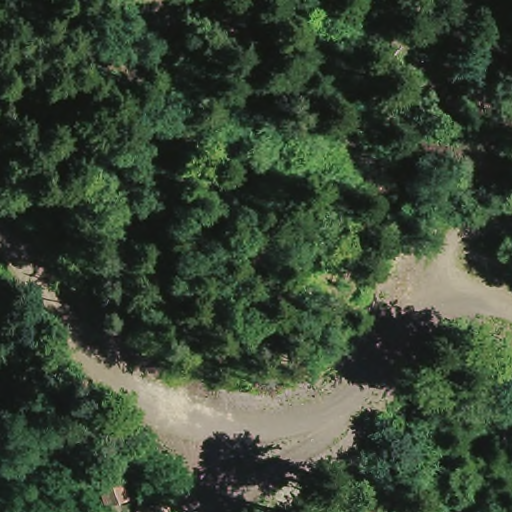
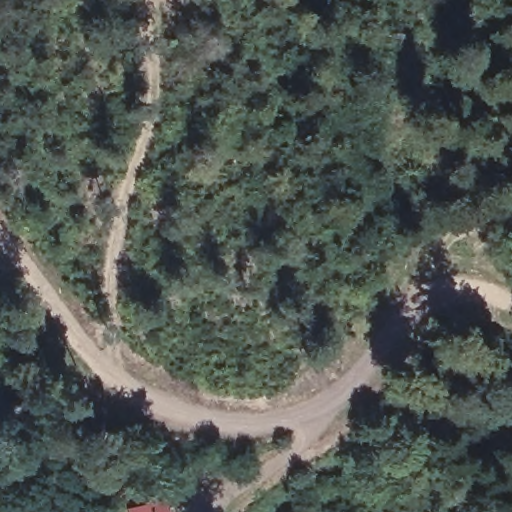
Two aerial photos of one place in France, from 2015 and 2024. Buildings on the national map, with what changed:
unchanged [(97,508),(90,484),(118,476),(123,500),(97,508)]
unchanged [(164,512),(132,512),(133,501),(164,504),(164,512)]

